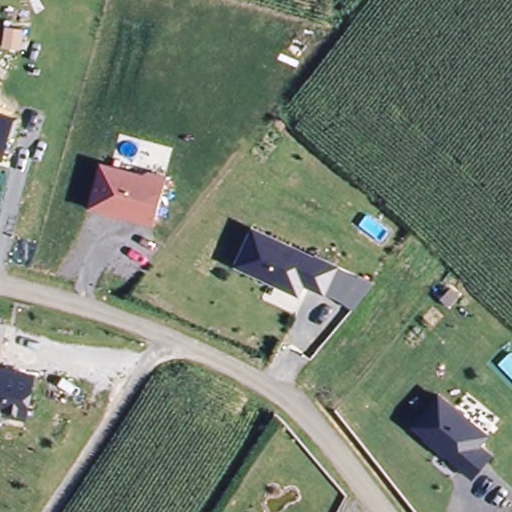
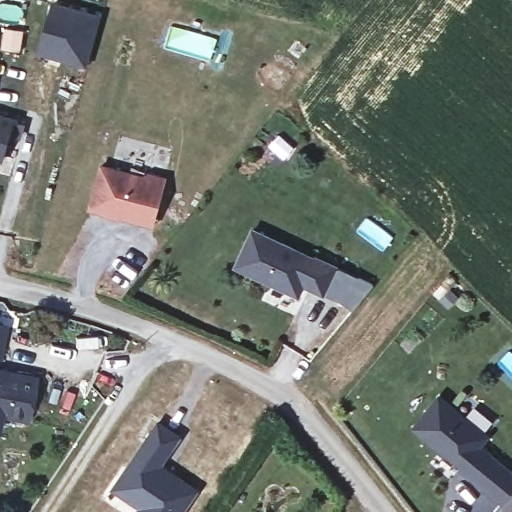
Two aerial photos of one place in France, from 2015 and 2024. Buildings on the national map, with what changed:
new [(88,65),(73,61),(40,52),(54,4),(86,13),(102,17),(88,65)]
unchanged [(15,119),(3,165),(0,165),(0,115),(15,119)]
unchanged [(142,174),(146,170),(166,177),(153,229),(86,210),(99,162),(142,174)]
unchanged [(339,266),(325,298),(300,287),(296,295),(231,265),(250,226),(339,266)]
unchanged [(6,321),(0,363),(0,321),(6,321)]
unchanged [(33,373),(26,423),(0,419),(0,367),(33,373)]
unchanged [(491,437),(483,447),(493,455),(473,480),(408,425),(438,391),(491,437)]
new [(182,435),(164,464),(199,489),(183,512),(136,512),(138,508),(111,490),(159,420),(182,435)]

